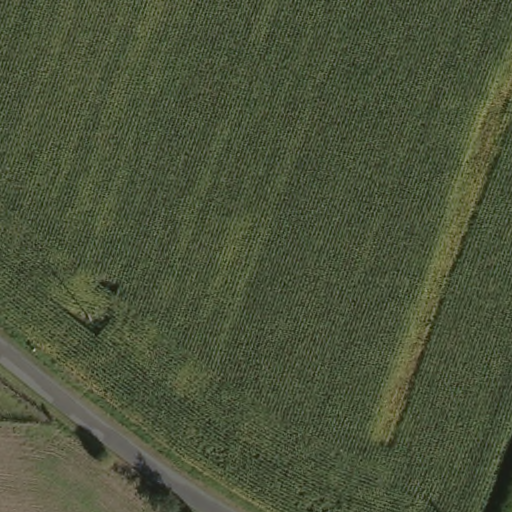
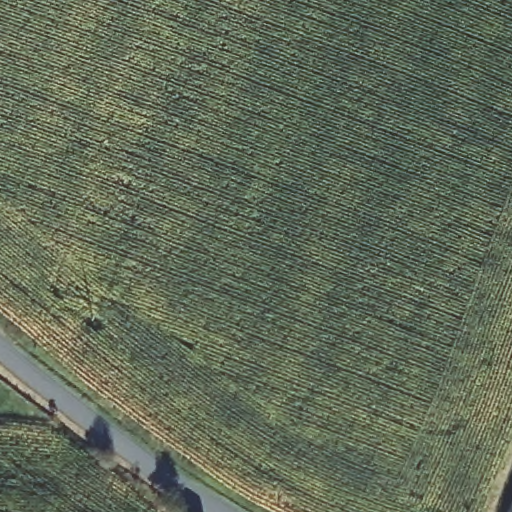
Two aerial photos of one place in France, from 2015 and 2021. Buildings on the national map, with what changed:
[]

